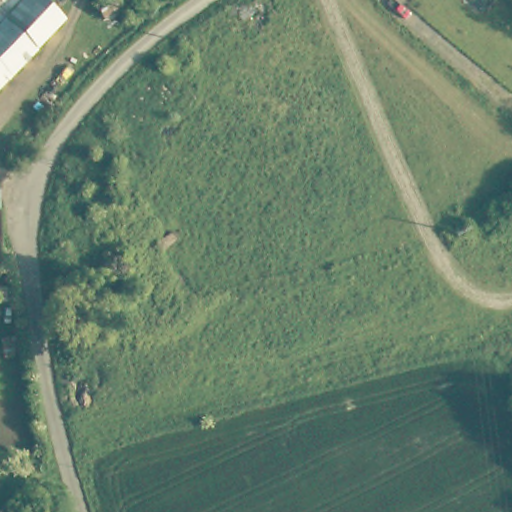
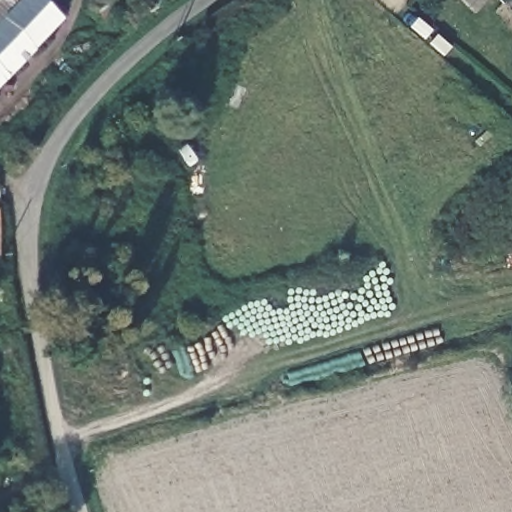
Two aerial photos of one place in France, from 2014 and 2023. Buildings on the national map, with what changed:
unchanged [(46,0),(62,16),(0,82),(0,19),(18,0),(46,0)]
unchanged [(100,0),(112,0),(115,4),(96,18),(90,9),(100,0)]

